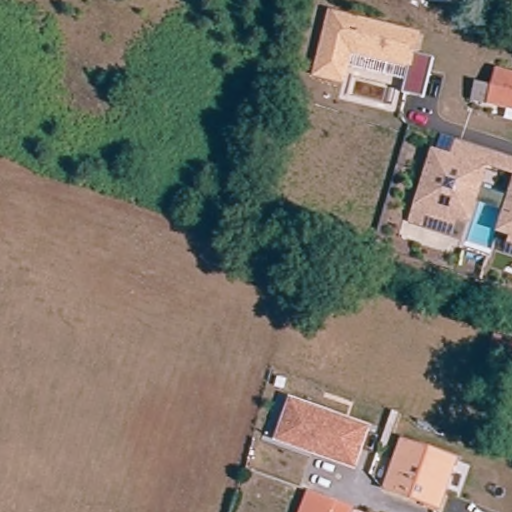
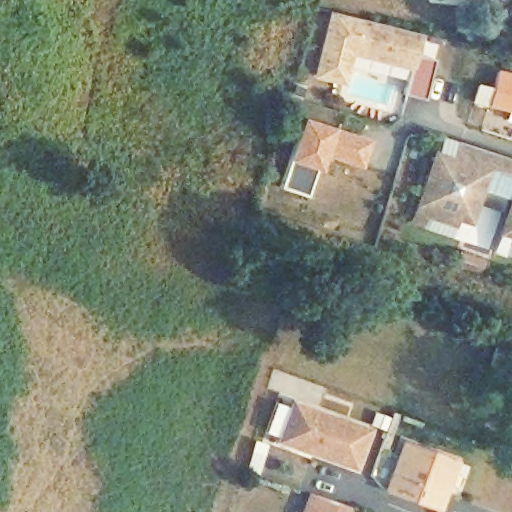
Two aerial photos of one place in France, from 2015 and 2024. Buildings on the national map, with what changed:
unchanged [(345,84),(313,76),(328,9),(421,32),(416,54),(433,58),(423,97),(402,93),(408,68),(352,55),(345,84)]
unchanged [(503,106),(486,102),(466,96),(470,81),(490,86),(495,68),(512,72),(512,119),(500,116),(503,106)]
new [(310,191),(285,183),(301,117),(360,136),(350,165),(321,162),(317,168),(310,191)]
unchanged [(512,193),(480,182),(466,220),(417,204),(434,155),(452,161),(458,143),(489,152),(512,160),(512,193)]
unchanged [(512,195),(512,235),(500,231),(512,195)]
unchanged [(410,223),(417,204),(459,218),(452,238),(410,223)]
unchanged [(512,257),(505,255),(511,235),(512,235),(512,257)]
unchanged [(493,335),(512,340),(512,369),(486,361),(493,335)]
unchanged [(367,431),(354,469),(278,442),(292,404),(367,431)]
unchanged [(505,439),(497,437),(500,428),(507,429),(512,411),(512,450),(503,449),(505,439)]
unchanged [(402,449),(455,467),(443,500),(438,512),(435,512),(431,511),(386,495),(402,449)]
unchanged [(354,512),(301,512),(308,493),(355,506),(354,512)]

